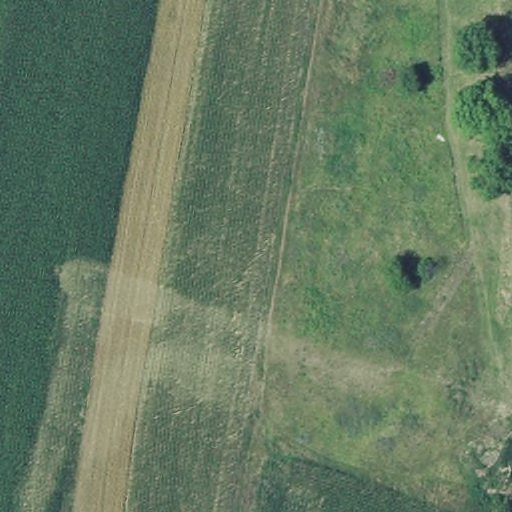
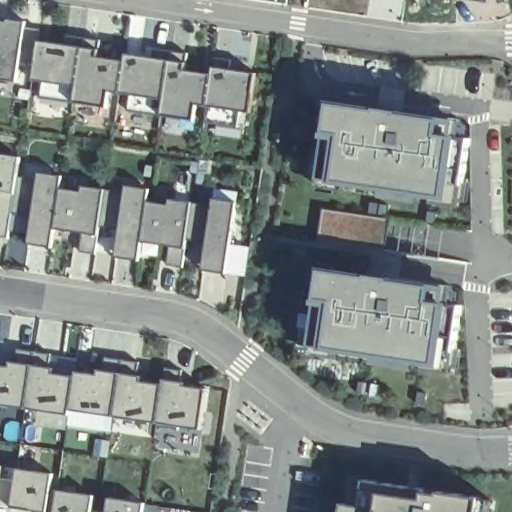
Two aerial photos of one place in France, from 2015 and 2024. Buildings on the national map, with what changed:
new [(11,82),(0,81),(0,21),(18,22),(11,82)]
new [(240,111),(238,126),(205,122),(208,106),(198,104),(195,120),(161,115),(128,110),(130,94),(109,92),(107,106),(73,102),(40,97),(43,81),(33,79),(35,65),(14,62),(18,26),(38,30),(40,41),(98,49),(97,58),(126,62),(127,54),(186,62),(184,72),(212,77),(214,68),(255,73),(249,112),(240,111)]
new [(421,116),(418,131),(433,134),(427,192),(318,175),(323,130),(309,127),(313,100),(421,116)]
new [(15,156),(5,238),(0,238),(0,154),(15,156)]
new [(55,175),(54,189),(76,191),(78,186),(100,188),(93,255),(78,252),(81,233),(47,228),(44,246),(23,244),(33,173),(55,175)]
new [(142,189),(141,202),(163,205),(164,199),(187,202),(181,268),(166,266),(168,247),(134,242),(131,260),(110,257),(119,186),(142,189)]
new [(227,202),(218,274),(198,271),(206,199),(227,202)]
new [(384,217),(381,252),(314,243),(319,208),(384,217)]
new [(412,282),(409,297),(424,300),(418,358),(309,341),(314,296),(301,293),(304,266),(412,282)]
new [(2,369),(3,361),(23,363),(18,403),(0,401),(0,369),(2,369)]
new [(45,366),(44,374),(63,377),(60,408),(18,403),(23,363),(45,366)]
new [(69,376),(90,379),(91,371),(111,373),(106,413),(65,408),(69,376)]
new [(133,376),(133,384),(152,387),(149,418),(106,413),(111,373),(133,376)]
new [(179,383),(178,391),(198,394),(194,425),(152,420),(156,380),(179,383)]
new [(1,466),(0,478),(0,466),(1,466)]
new [(46,511),(6,506),(10,469),(48,473),(46,511)]
new [(494,512),(329,512),(331,503),(349,507),(354,479),(496,500),(494,512)]
new [(50,512),(52,491),(90,495),(89,512),(50,512)]
new [(104,512),(104,500),(144,504),(143,512),(104,512)]

